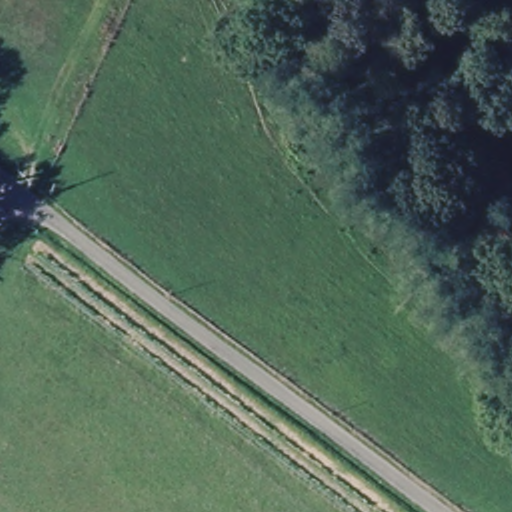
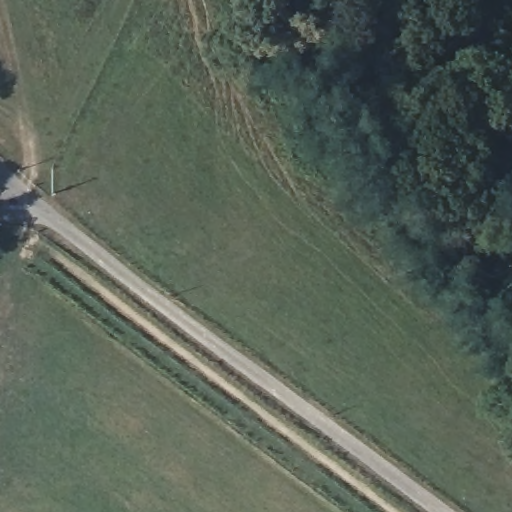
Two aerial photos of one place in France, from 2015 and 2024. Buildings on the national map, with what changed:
[]

